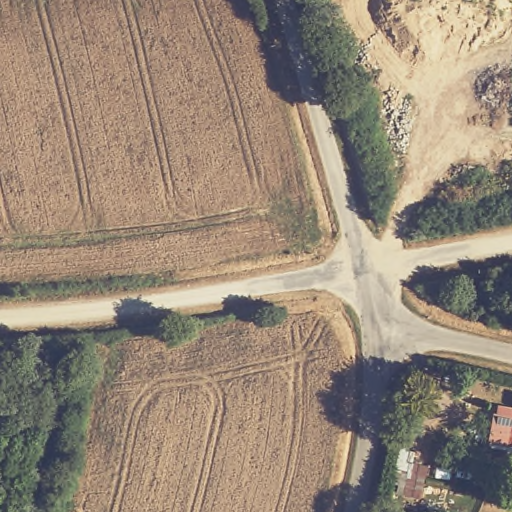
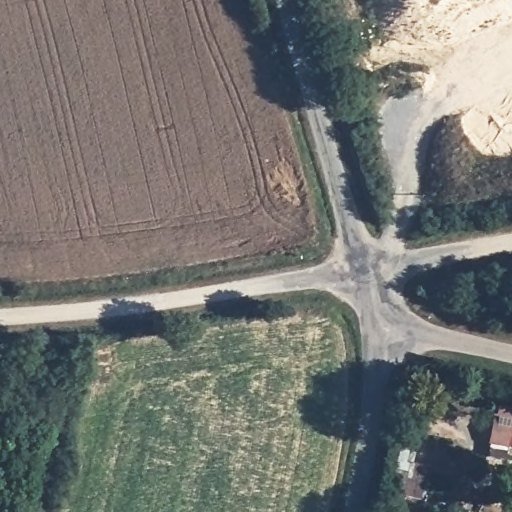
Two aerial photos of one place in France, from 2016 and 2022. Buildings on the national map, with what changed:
unchanged [(501,440),(506,413),(512,414),(512,442),(501,440)]

